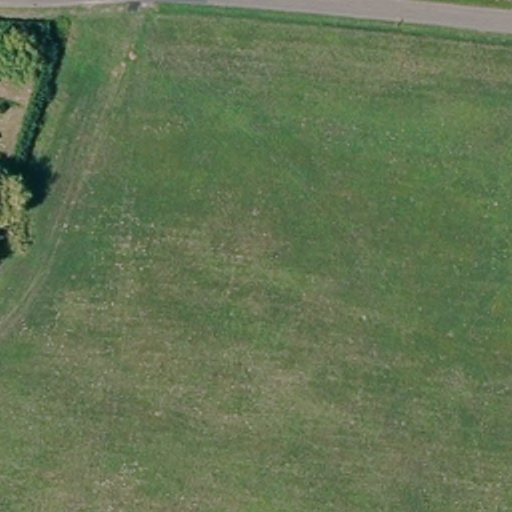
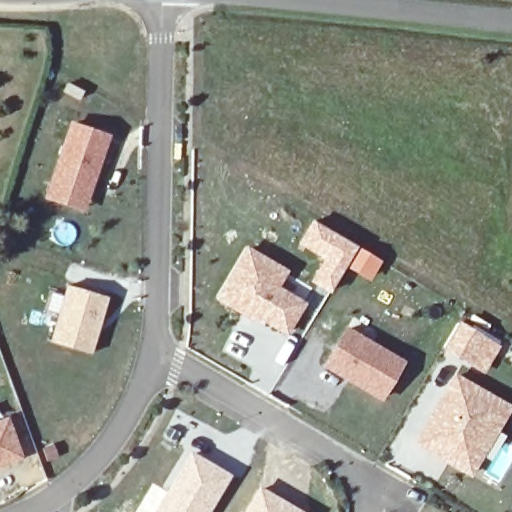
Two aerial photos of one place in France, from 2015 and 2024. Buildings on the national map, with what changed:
new [(73,125),(108,137),(88,197),(84,209),(48,197),(52,185),(73,125)]
new [(293,318),(285,332),(256,315),(253,319),(218,297),(220,293),(247,249),(284,272),(275,287),(289,296),(302,304),(293,318)]
new [(52,292),(62,295),(66,284),(109,297),(92,354),(49,342),(57,314),(46,310),(52,292)]
new [(460,323),(487,340),(473,363),(446,346),(460,323)]
new [(346,330),(401,363),(379,399),(324,365),(346,330)]
new [(432,450),(417,442),(433,414),(456,376),(510,408),(496,431),(481,455),(470,474),(449,461),(443,457),(432,450)]
new [(10,416),(25,458),(0,468),(0,419),(10,416)]
new [(232,475),(210,512),(153,512),(191,451),(232,475)]
new [(296,512),(246,512),(259,490),(296,512)]

